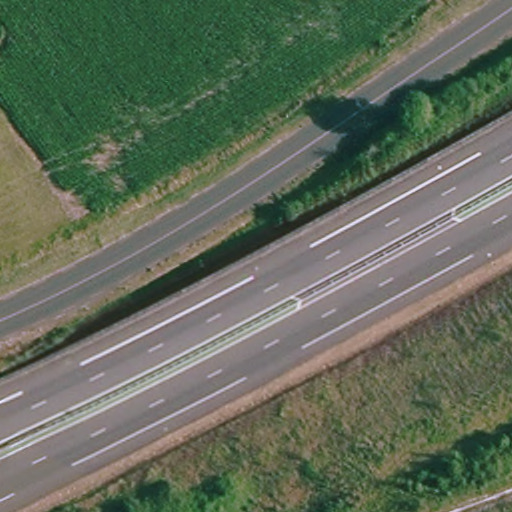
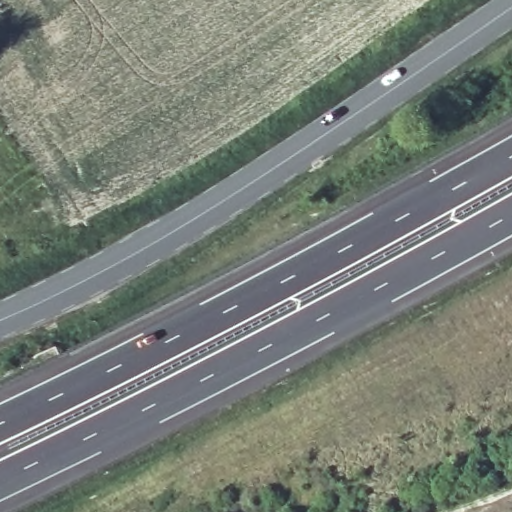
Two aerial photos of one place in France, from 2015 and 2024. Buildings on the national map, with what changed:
[]

